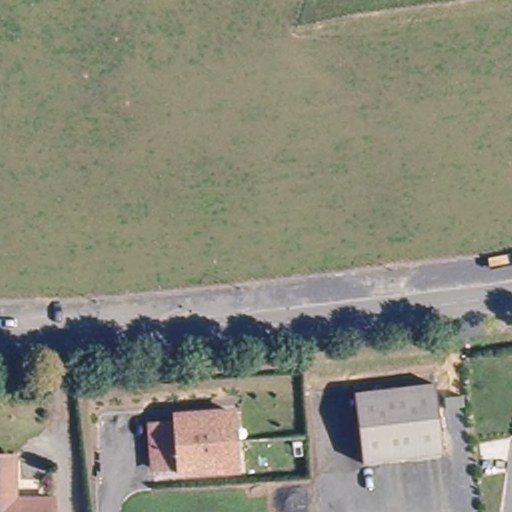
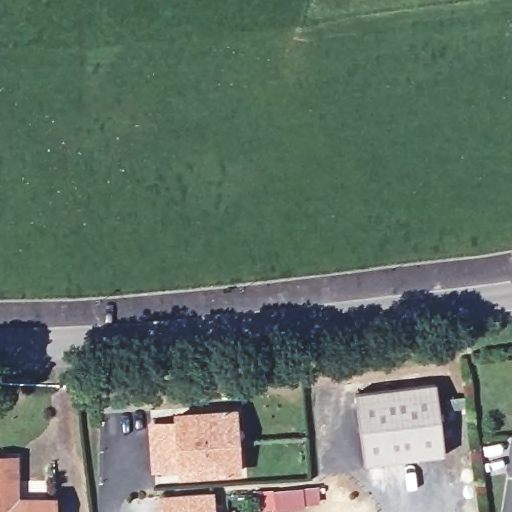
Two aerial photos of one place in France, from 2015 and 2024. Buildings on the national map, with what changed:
unchanged [(355,393),(432,385),(440,455),(362,462),(355,393)]
unchanged [(180,473),(179,466),(154,469),(149,426),(175,423),(174,416),(224,410),(230,468),(180,473)]
unchanged [(230,468),(227,439),(224,410),(231,410),(235,438),(237,467),(230,468)]
unchanged [(57,512),(0,512),(0,455),(16,455),(17,493),(56,492),(57,512)]
new [(214,491),(215,512),(159,512),(157,495),(214,491)]

